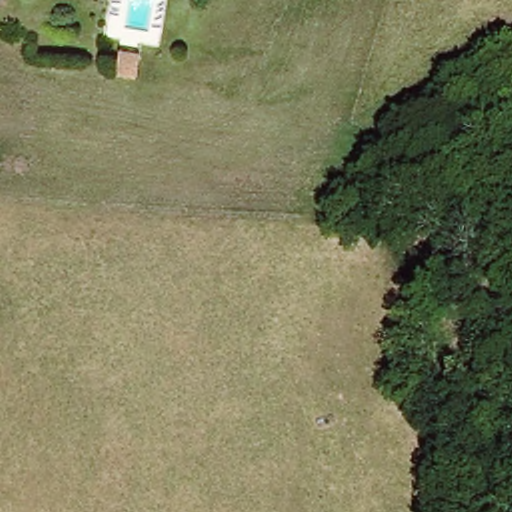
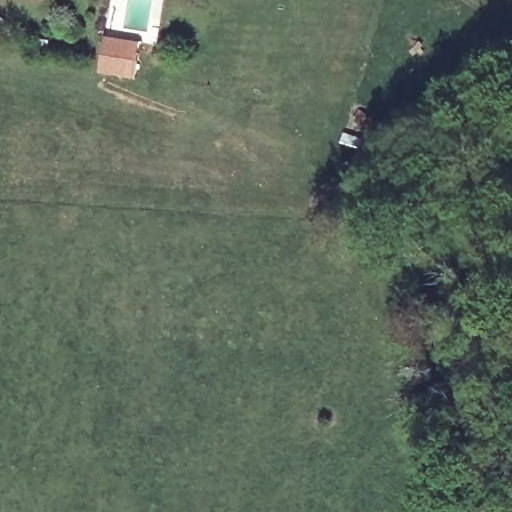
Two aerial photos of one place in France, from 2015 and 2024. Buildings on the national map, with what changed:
new [(103,34),(140,41),(134,79),(97,74),(103,34)]

